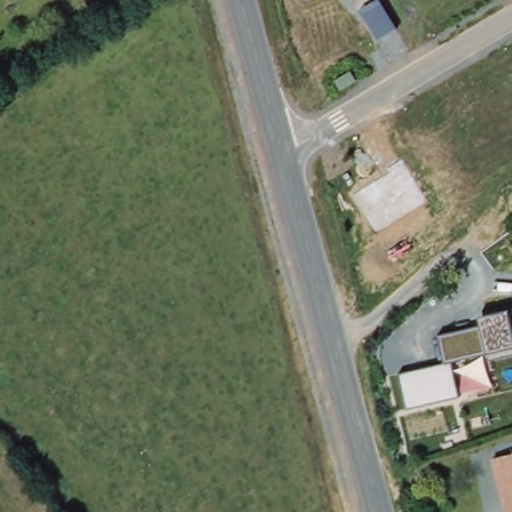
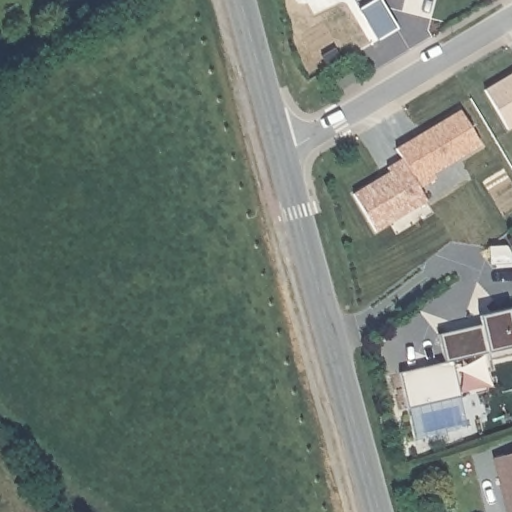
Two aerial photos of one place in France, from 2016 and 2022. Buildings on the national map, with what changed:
unchanged [(378,0),(379,0),(397,26),(377,39),(359,11),(378,0)]
new [(484,89),(512,73),(512,127),(508,129),(484,89)]
new [(432,175),(435,178),(418,188),(427,201),(375,231),(352,193),(390,170),(387,165),(401,157),(396,148),(461,110),(481,145),(432,175)]
unchanged [(444,363),(438,334),(478,326),(476,315),(508,310),(512,309),(512,356),(490,362),(487,353),(451,361),(458,396),(406,408),(398,373),(444,363)]
unchanged [(512,451),(512,512),(505,512),(492,456),(512,451)]

